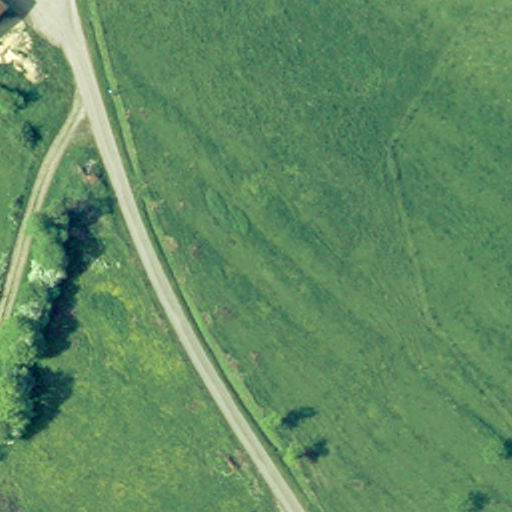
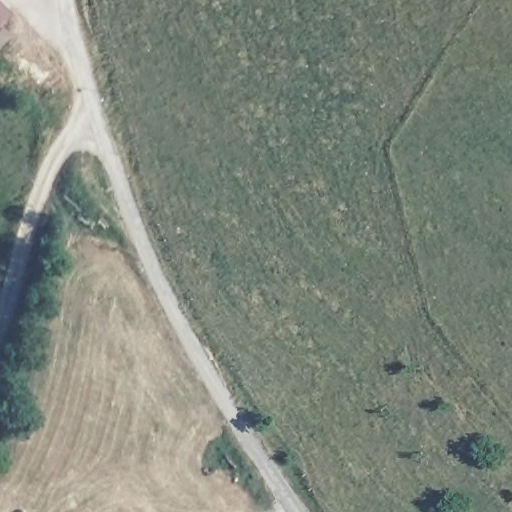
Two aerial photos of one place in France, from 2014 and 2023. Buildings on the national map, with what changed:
unchanged [(7,13),(0,20),(0,6),(7,13)]

